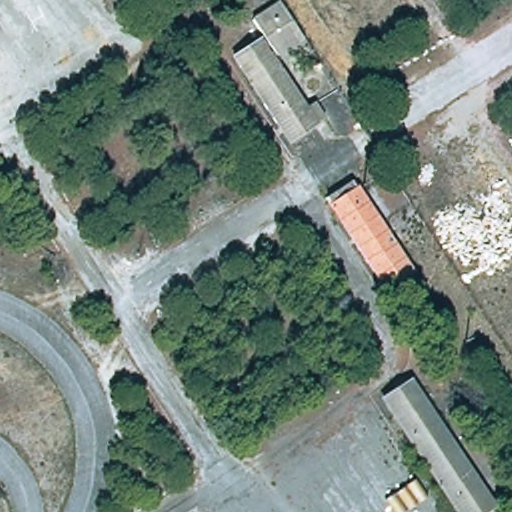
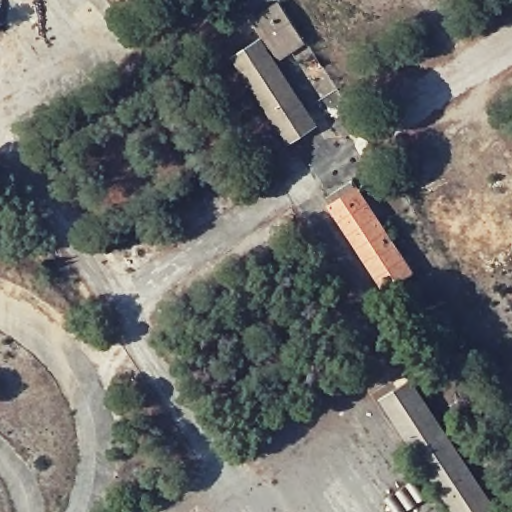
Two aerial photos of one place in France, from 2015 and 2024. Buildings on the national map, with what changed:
unchanged [(122,0),(126,0),(123,2),(122,0)]
unchanged [(263,33),(249,12),(274,0),(276,0),(305,39),(276,54),(314,116),(283,135),(231,54),(263,33)]
unchanged [(351,171),(410,261),(378,285),(318,193),(351,171)]
unchanged [(411,371),(498,505),(487,512),(452,512),(378,397),(411,371)]

